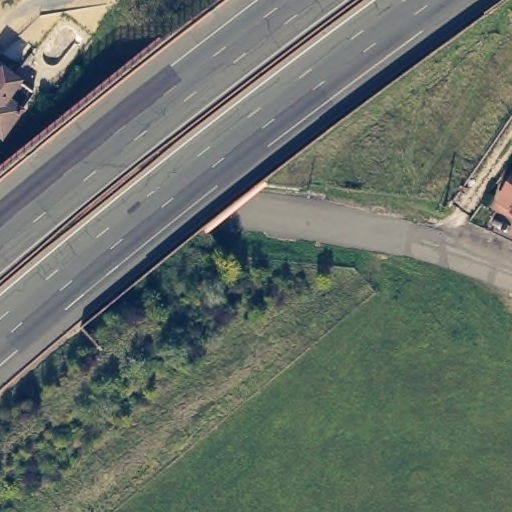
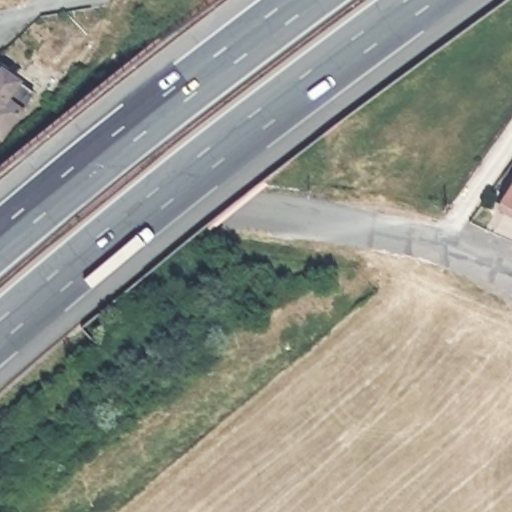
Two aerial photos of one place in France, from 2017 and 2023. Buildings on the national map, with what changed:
unchanged [(30,107),(10,135),(0,128),(0,66),(7,71),(39,93),(29,106),(30,107)]
unchanged [(507,203),(512,195),(512,205),(507,203)]

